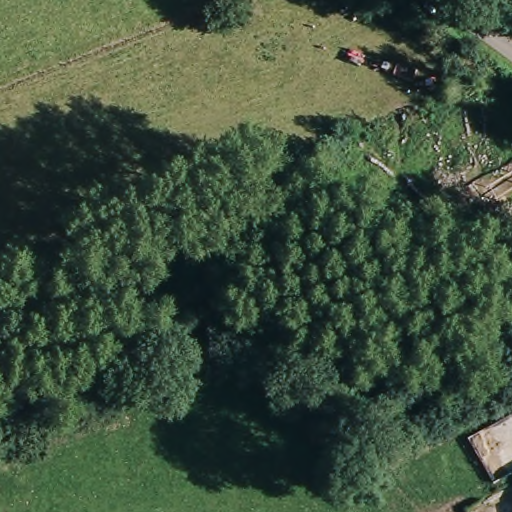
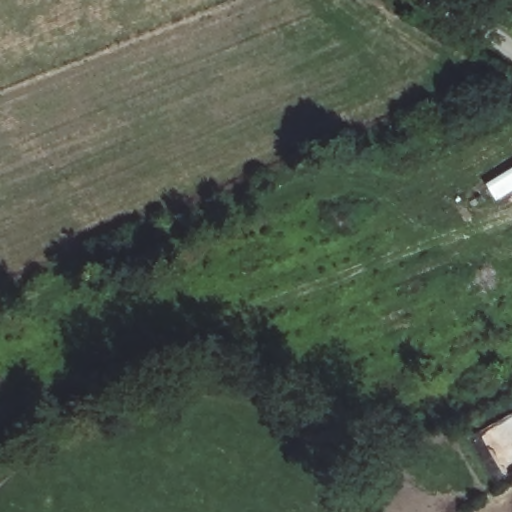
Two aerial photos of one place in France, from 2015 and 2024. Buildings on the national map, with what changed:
[]

